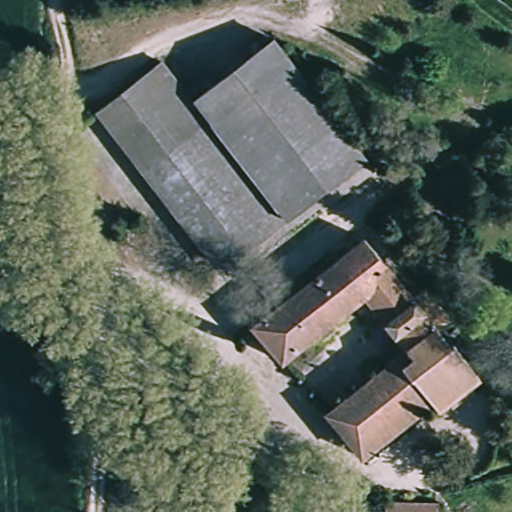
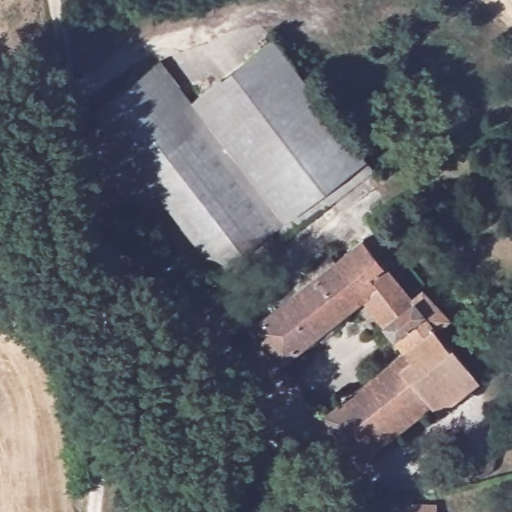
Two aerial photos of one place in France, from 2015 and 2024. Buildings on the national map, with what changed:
unchanged [(155,57),(186,97),(267,33),(369,163),(227,274),(95,104),(155,57)]
unchanged [(414,293),(425,285),(452,312),(438,323),(452,341),(454,340),(480,374),(439,406),(432,398),(361,454),(325,409),(407,346),(365,292),(282,357),(252,321),(365,234),(414,293)]
unchanged [(433,512),(381,512),(381,507),(434,509),(433,512)]

